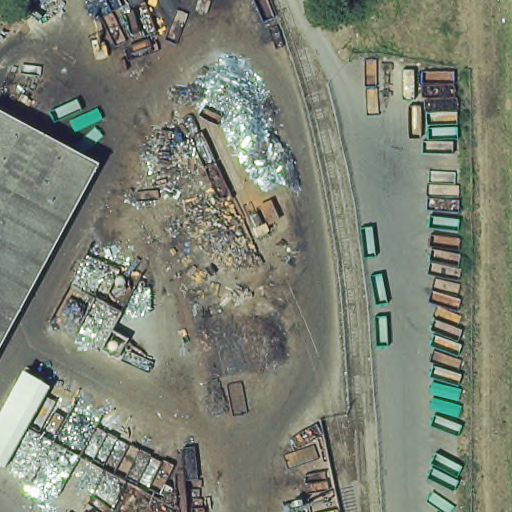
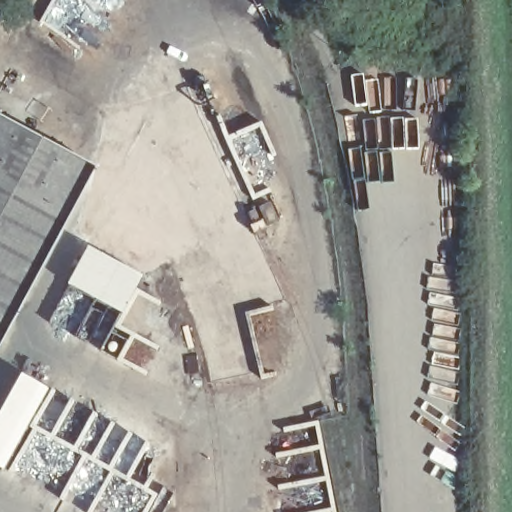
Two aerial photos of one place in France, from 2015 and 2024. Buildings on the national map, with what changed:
unchanged [(90,170),(0,337),(0,121),(90,170)]
new [(140,276),(121,313),(67,285),(87,247),(140,276)]
unchanged [(0,457),(0,406),(15,376),(37,390),(0,457)]

